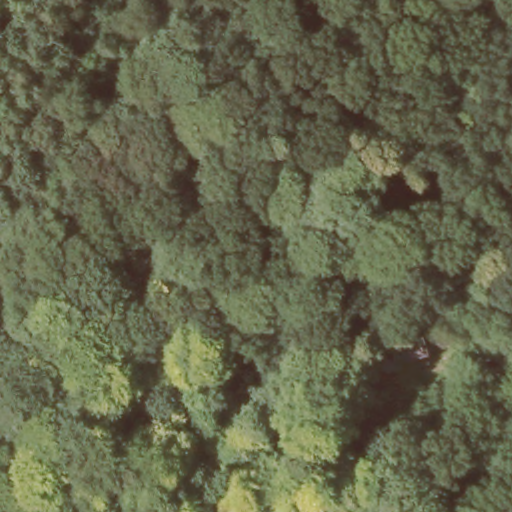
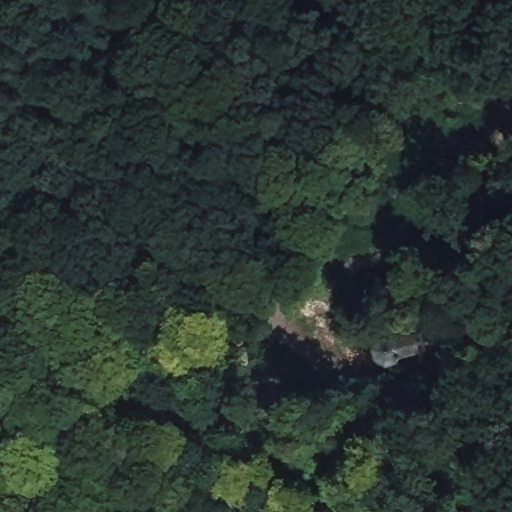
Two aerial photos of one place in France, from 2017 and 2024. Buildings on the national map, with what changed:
unchanged [(399,357),(394,363),(386,367),(377,364),(371,356),(371,347),(376,338),(389,333),(414,291),(426,298),(401,340),(400,349),(399,357)]

